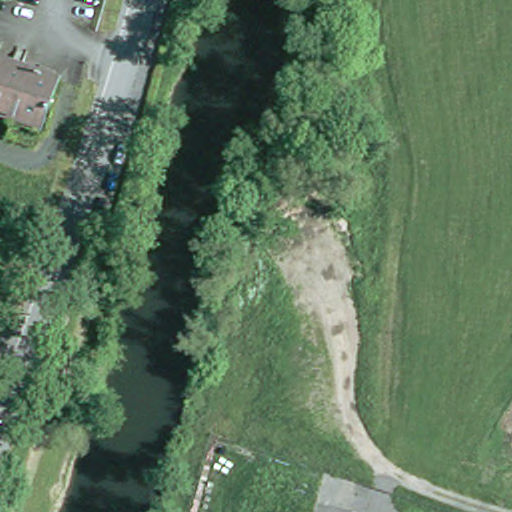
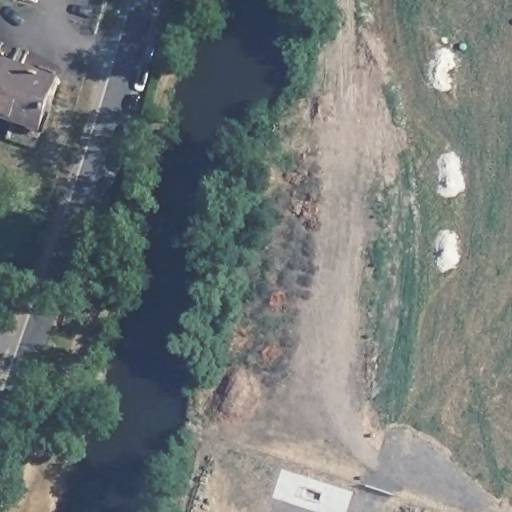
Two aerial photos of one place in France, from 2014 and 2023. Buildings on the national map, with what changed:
unchanged [(35,143),(7,133),(13,114),(0,109),(0,55),(57,74),(35,143)]

